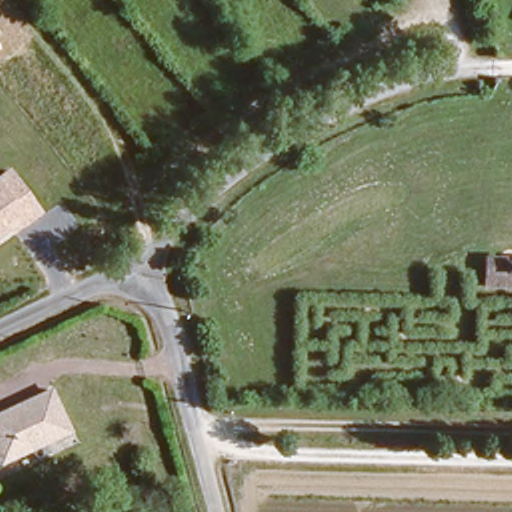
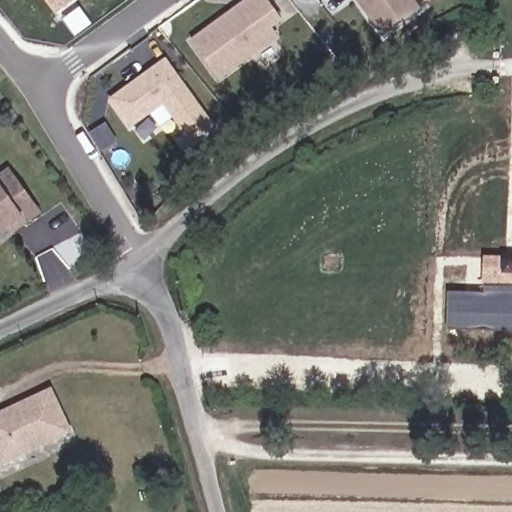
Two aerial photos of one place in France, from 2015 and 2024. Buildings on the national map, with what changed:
new [(75,0),(77,0),(76,1),(75,0)]
new [(274,29),(281,37),(221,80),(191,40),(246,0),(269,0),(285,21),(274,29)]
new [(358,0),(417,0),(424,10),(386,38),(358,0)]
new [(194,145),(165,105),(132,129),(110,99),(168,57),(218,127),(194,145)]
unchanged [(9,172),(40,214),(15,232),(10,225),(0,232),(0,178),(9,172)]
unchanged [(484,256),(512,256),(512,288),(484,287),(484,256)]
new [(449,291),(485,292),(484,287),(512,288),(512,330),(448,330),(449,291)]
unchanged [(46,385),(65,424),(0,453),(0,405),(46,385)]

